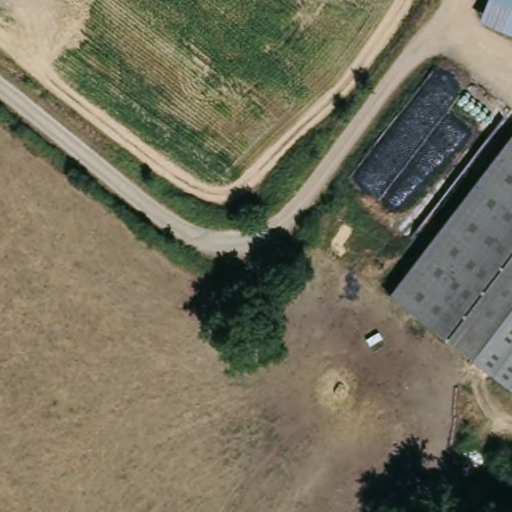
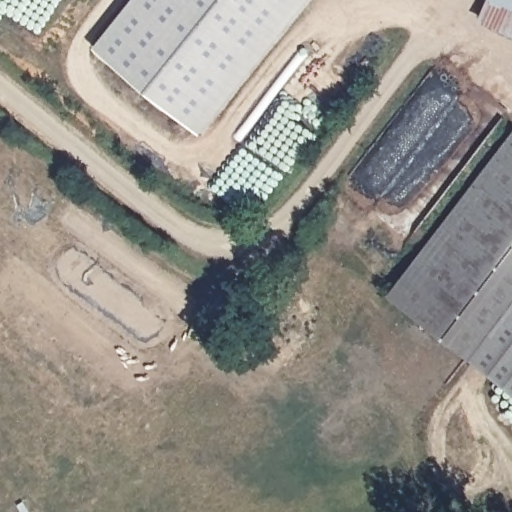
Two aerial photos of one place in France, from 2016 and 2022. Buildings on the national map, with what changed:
new [(92,47),(130,0),(306,0),(199,134),(92,47)]
unchanged [(489,0),(512,0),(512,35),(480,21),(489,0)]
unchanged [(512,132),(512,389),(387,296),(512,132)]

